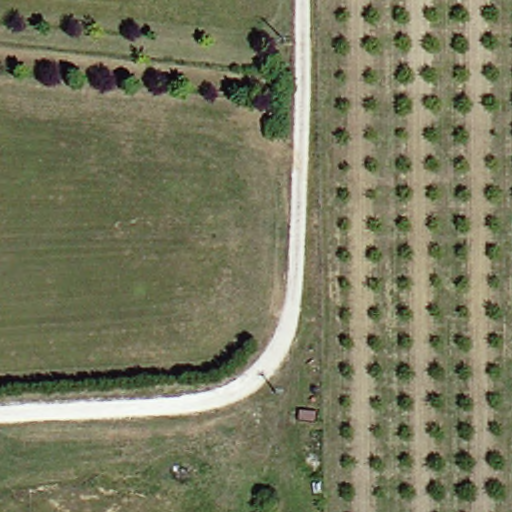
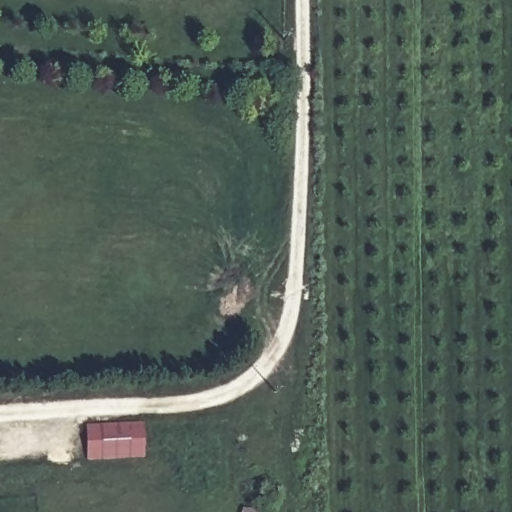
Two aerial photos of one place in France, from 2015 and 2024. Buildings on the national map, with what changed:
new [(86,424),(144,423),(144,458),(88,459),(86,424)]

